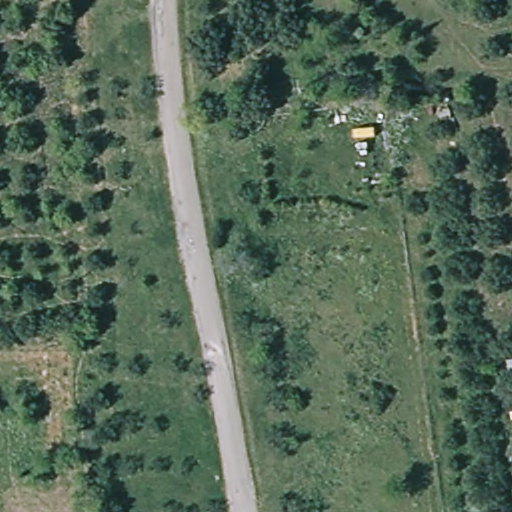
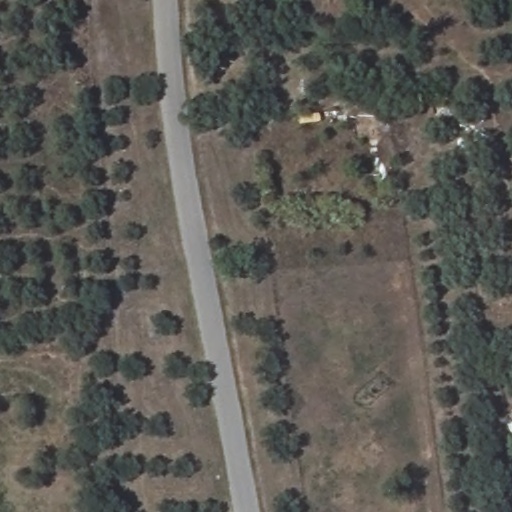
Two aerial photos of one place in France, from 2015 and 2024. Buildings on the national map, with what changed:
unchanged [(510,369),(512,368),(512,379),(510,369)]

